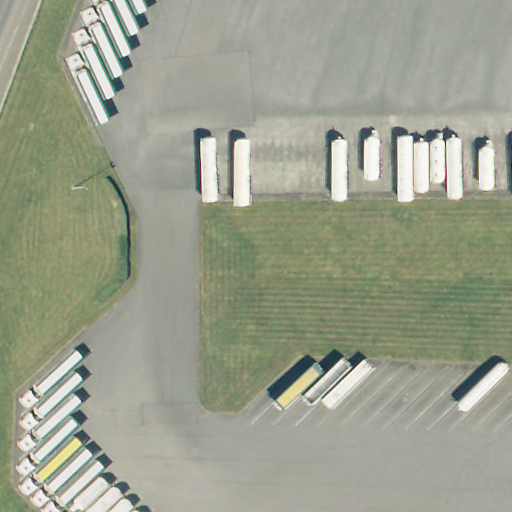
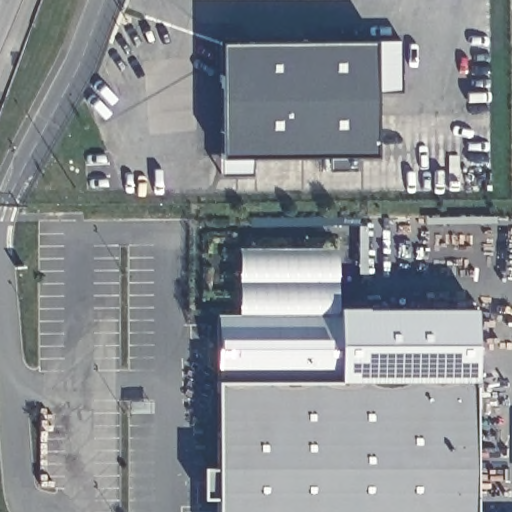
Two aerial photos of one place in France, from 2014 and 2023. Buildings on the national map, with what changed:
new [(220,158),(219,42),(375,40),(377,157),(220,158)]
new [(400,40),(401,90),(376,91),(375,40),(400,40)]
new [(256,176),(220,176),(220,158),(257,158),(256,176)]
new [(475,307),(476,512),(217,512),(217,498),(201,498),(202,468),(216,468),(215,381),(216,314),(239,314),(239,247),(335,249),(341,307),(475,307)]

